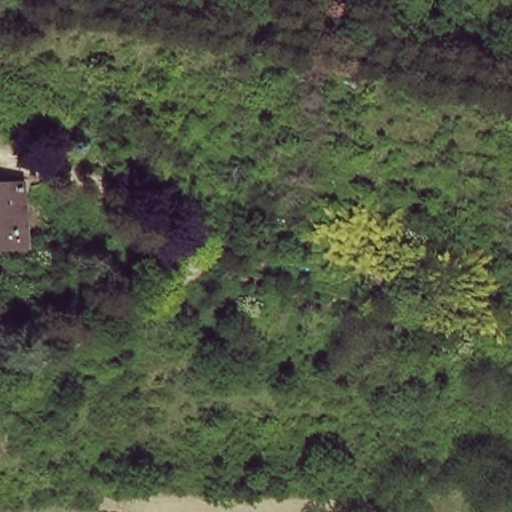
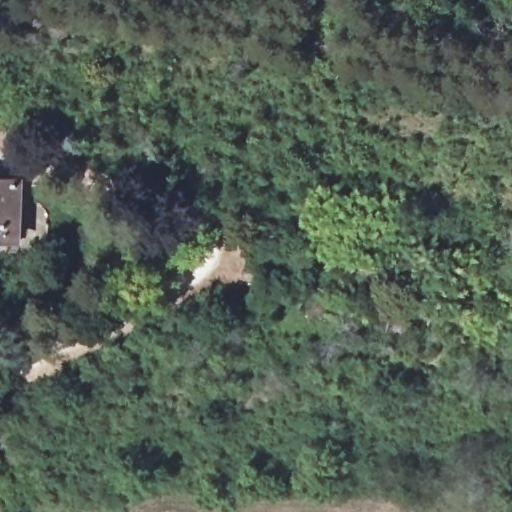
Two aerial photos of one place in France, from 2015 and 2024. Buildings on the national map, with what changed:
unchanged [(20,184),(20,207),(0,206),(0,184),(20,184)]
unchanged [(11,239),(0,239),(0,206),(20,207),(20,213),(21,239),(11,239)]

